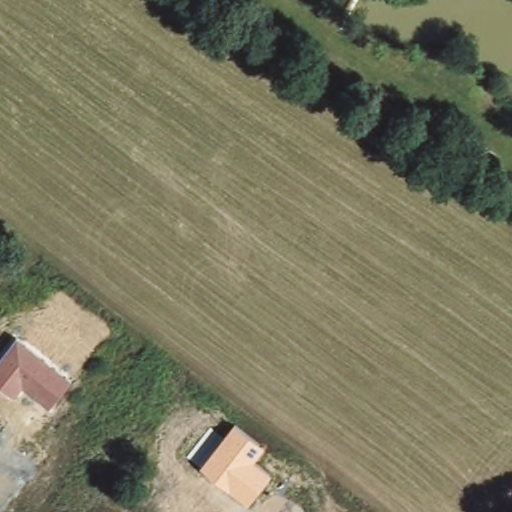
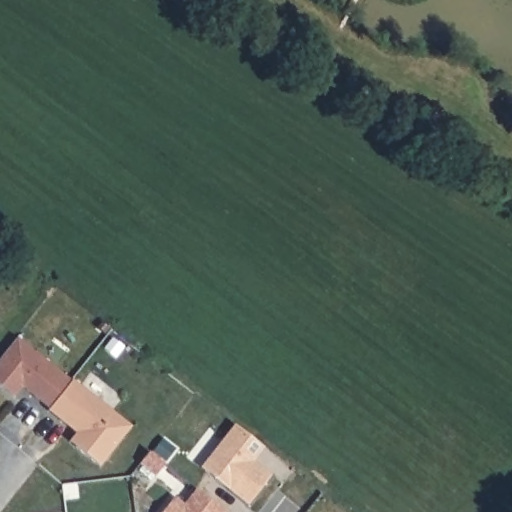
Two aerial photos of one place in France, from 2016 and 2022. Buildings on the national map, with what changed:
unchanged [(22,391),(14,401),(0,390),(0,362),(17,342),(72,385),(50,412),(22,391)]
new [(49,414),(72,383),(132,430),(101,469),(77,450),(70,445),(77,436),(84,441),(49,414)]
unchanged [(249,461),(271,478),(247,508),(205,474),(201,471),(212,457),(235,427),(260,447),(249,461)]
new [(253,465),(249,461),(260,447),(263,451),(253,465)]
new [(166,468),(157,479),(141,467),(150,455),(166,468)]
new [(186,508),(197,493),(223,512),(166,512),(176,500),(186,508)]

